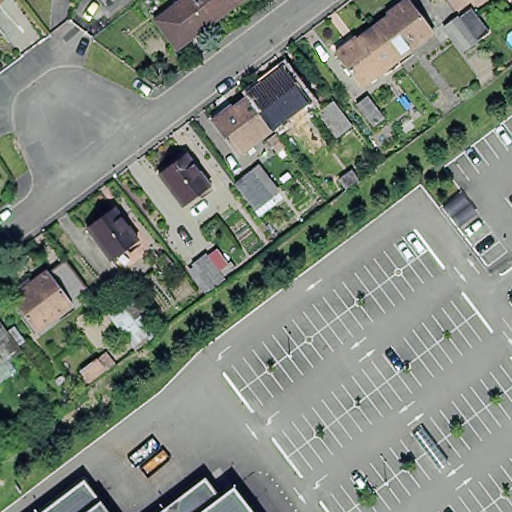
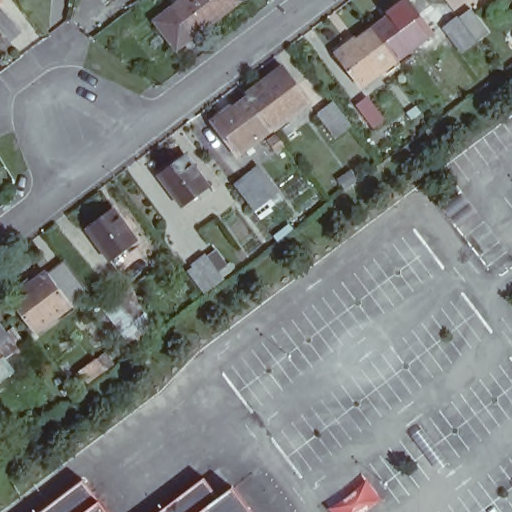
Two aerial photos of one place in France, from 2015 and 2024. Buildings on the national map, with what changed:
unchanged [(176,49),(155,20),(182,0),(241,0),(176,49)]
unchanged [(388,16),(387,15),(406,0),(407,0),(432,32),(397,60),(373,29),(388,16)]
unchanged [(468,47),(449,23),(463,12),(482,36),(468,47)]
unchanged [(397,60),(361,87),(335,54),(356,39),(356,40),(373,29),(397,60)]
unchanged [(248,96),(264,85),(263,84),(284,68),(308,101),(273,128),(248,96)]
unchanged [(158,85),(158,88),(155,88),(156,85),(158,85)]
unchanged [(236,155),(211,122),(232,107),(233,109),(248,96),(273,128),(236,155)]
unchanged [(373,126),(356,105),(367,96),(384,118),(373,126)]
unchanged [(351,125),(336,137),(318,114),(333,101),(351,125)]
unchanged [(182,212),(158,180),(186,159),(209,191),(182,212)]
unchanged [(253,210),(234,185),(250,172),(251,172),(259,166),(277,190),(269,196),(269,197),(253,210)]
unchanged [(344,190),(338,180),(351,170),(358,180),(344,190)]
unchanged [(138,240),(110,261),(86,229),(113,208),(138,240)]
unchanged [(193,266),(206,255),(223,278),(209,288),(193,266)]
unchanged [(35,337),(10,305),(22,295),(18,291),(28,285),(31,288),(46,277),(47,278),(64,265),(86,292),(68,306),(71,310),(35,337)]
unchanged [(134,350),(101,306),(110,298),(115,296),(133,288),(137,301),(157,328),(146,336),(148,340),(134,350)]
unchanged [(3,369),(0,365),(0,328),(20,356),(3,369)]
unchanged [(104,370),(88,382),(80,371),(96,360),(104,370)]
unchanged [(24,432),(19,427),(31,418),(35,425),(24,432)]
unchanged [(214,501),(228,490),(244,512),(160,512),(199,481),(214,501)]
unchanged [(100,512),(41,512),(78,483),(100,512)]

